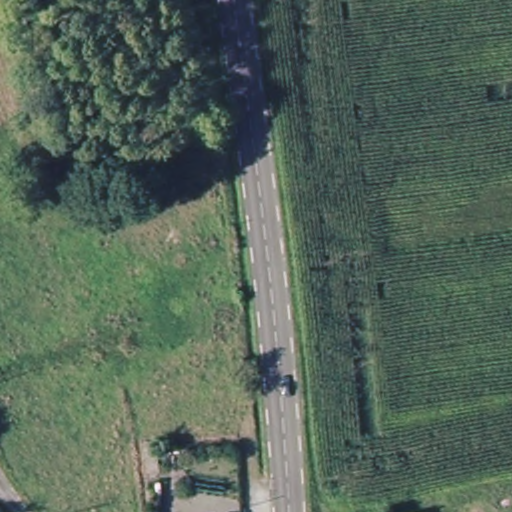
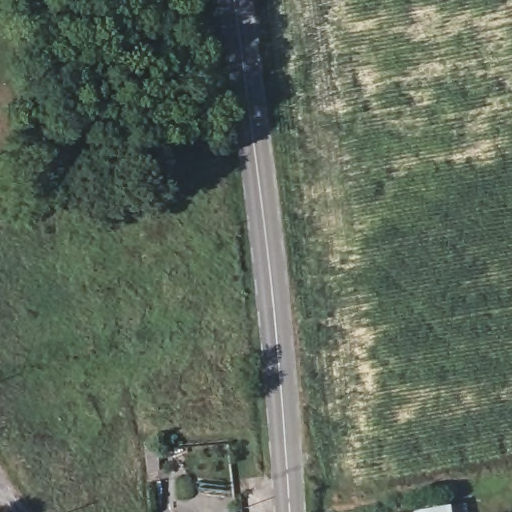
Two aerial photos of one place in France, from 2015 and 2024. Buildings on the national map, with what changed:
unchanged [(140,442),(152,440),(154,466),(142,467),(140,442)]
new [(420,510),(451,503),(453,512),(420,512),(420,510)]
unchanged [(413,507),(415,512),(394,512),(413,507)]

